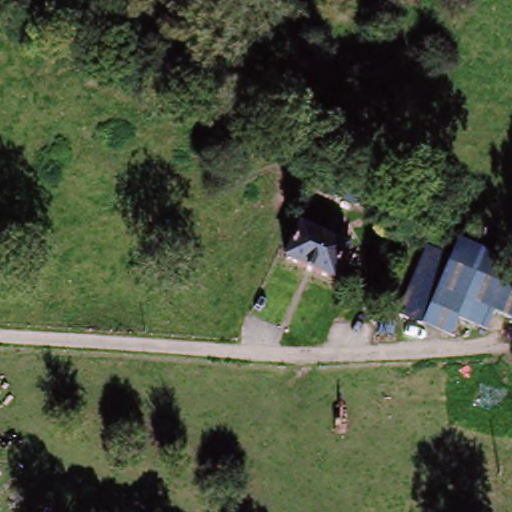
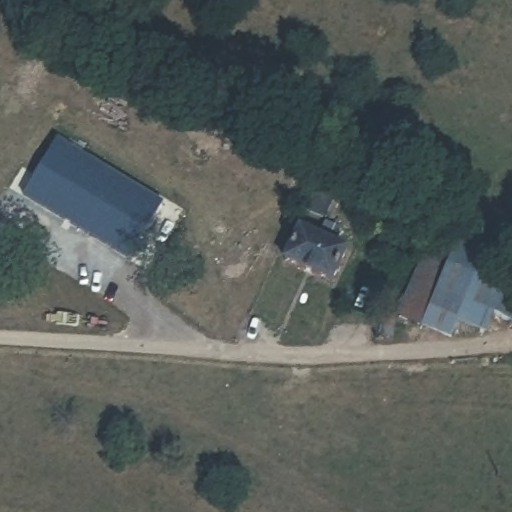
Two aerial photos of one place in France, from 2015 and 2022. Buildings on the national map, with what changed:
new [(165,203),(131,260),(24,197),(60,141),(165,203)]
unchanged [(344,180),(370,191),(362,210),(336,199),(344,180)]
unchanged [(300,237),(345,257),(332,286),(287,266),(300,237)]
unchanged [(484,333),(428,308),(457,242),(512,267),(512,325),(490,315),(484,333)]
unchanged [(430,244),(452,255),(428,308),(458,321),(452,338),(397,315),(430,244)]

